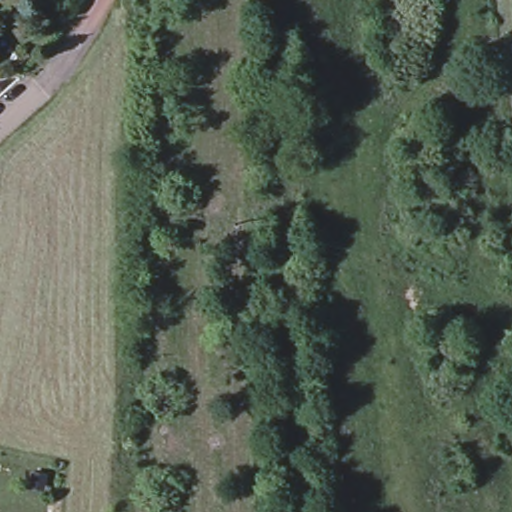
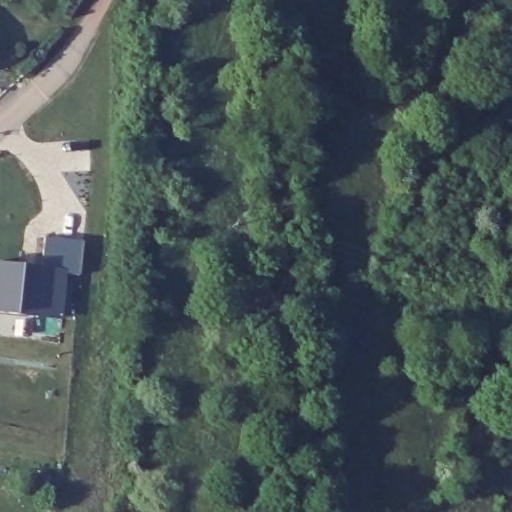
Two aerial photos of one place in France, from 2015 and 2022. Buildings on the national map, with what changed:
unchanged [(1,52),(0,52),(0,51),(1,52)]
new [(84,241),(81,273),(67,272),(63,320),(0,314),(0,263),(42,267),(45,237),(84,241)]

